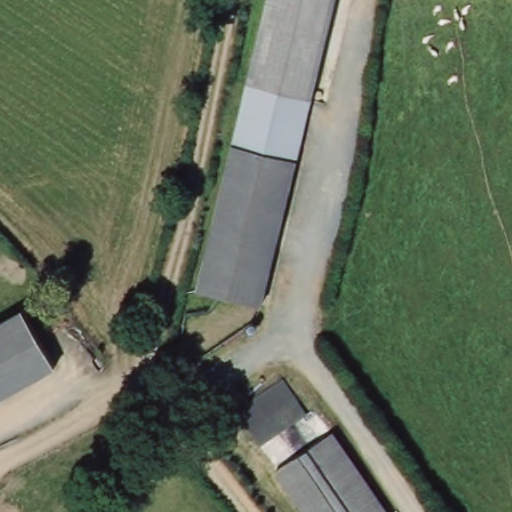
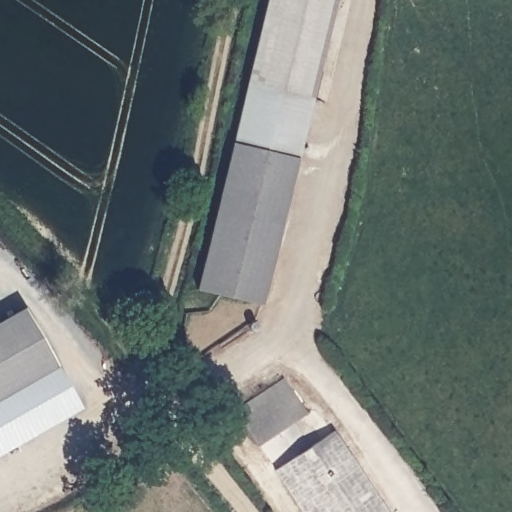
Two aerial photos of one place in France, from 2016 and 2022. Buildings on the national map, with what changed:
unchanged [(195,288),(265,0),(336,0),(261,304),(195,288)]
unchanged [(29,312),(32,317),(59,369),(0,399),(0,326),(29,312)]
new [(59,369),(79,408),(0,454),(0,399),(59,369)]
unchanged [(394,512),(306,512),(280,472),(336,430),(394,512)]

